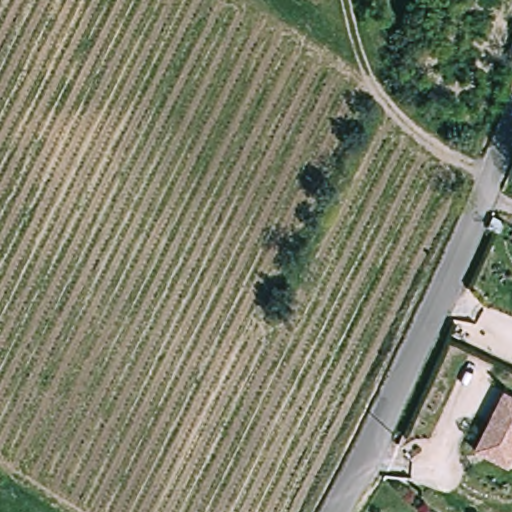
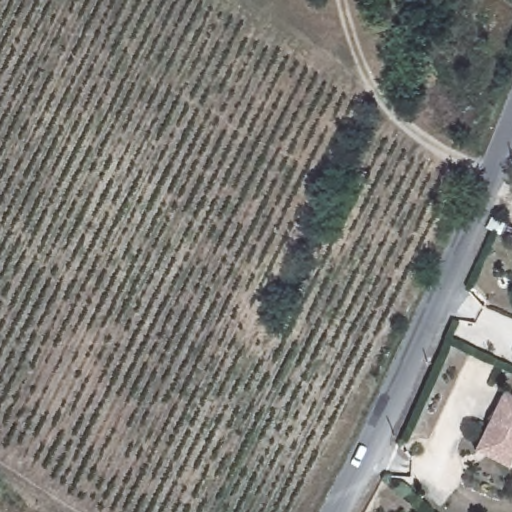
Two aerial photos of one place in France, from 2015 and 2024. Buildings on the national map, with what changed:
unchanged [(475,451),(484,432),(504,393),(512,397),(512,457),(510,462),(507,467),(475,451)]

